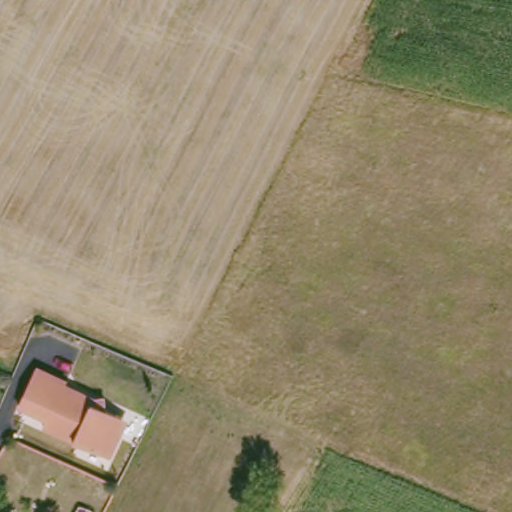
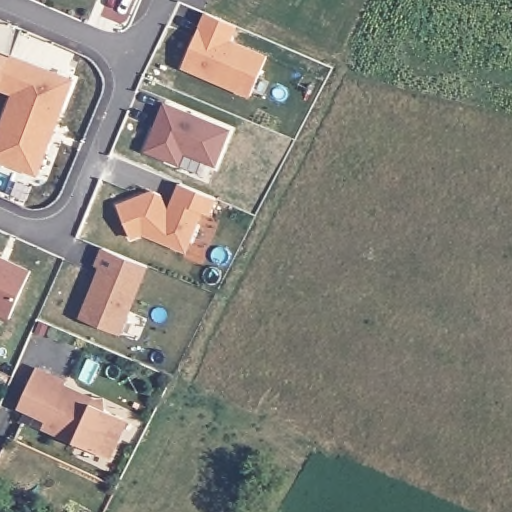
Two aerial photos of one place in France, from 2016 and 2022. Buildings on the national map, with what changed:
new [(250,97),(182,67),(207,13),(237,27),(230,41),(267,58),(250,97)]
new [(12,56),(0,86),(0,53),(12,56)]
new [(0,86),(12,56),(73,80),(37,173),(0,159),(0,134),(16,92),(0,86)]
new [(184,152),(179,164),(146,151),(155,128),(159,119),(165,103),(231,130),(216,166),(184,152)]
new [(118,206),(153,191),(160,194),(168,212),(174,214),(179,201),(175,199),(181,183),(217,197),(210,214),(202,211),(187,250),(143,233),(132,238),(118,206)]
new [(97,264),(92,262),(99,245),(143,263),(115,331),(76,315),(97,264)]
new [(10,318),(0,313),(0,257),(32,271),(10,318)]
unchanged [(112,461),(42,430),(47,420),(20,406),(37,369),(96,394),(91,403),(130,419),(112,461)]

